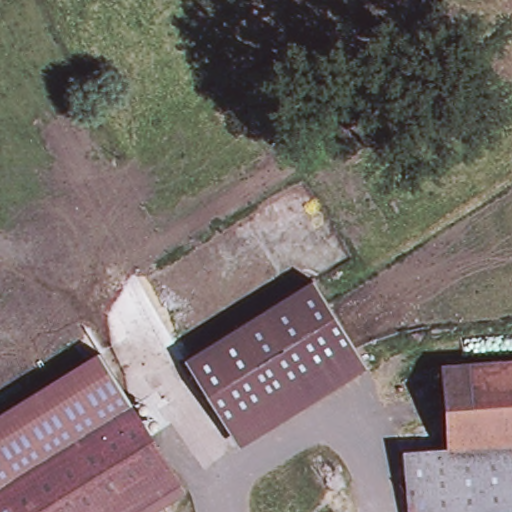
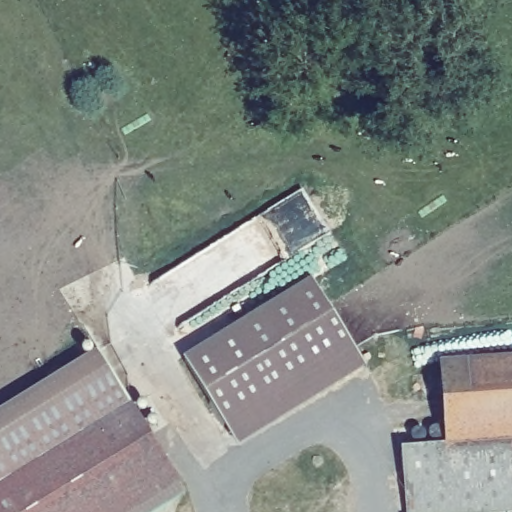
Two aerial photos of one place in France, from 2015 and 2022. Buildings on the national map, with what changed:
unchanged [(370,364),(240,444),(184,355),(314,273),(370,364)]
unchanged [(0,411),(100,347),(133,402),(0,487),(0,411)]
unchanged [(445,361),(512,358),(512,436),(450,440),(445,361)]
unchanged [(128,512),(0,512),(0,487),(133,402),(180,479),(128,512)]
unchanged [(434,512),(410,512),(405,444),(450,440),(512,436),(512,505),(434,512)]

